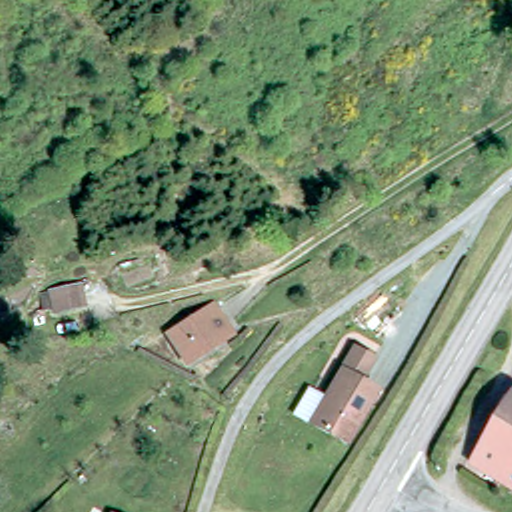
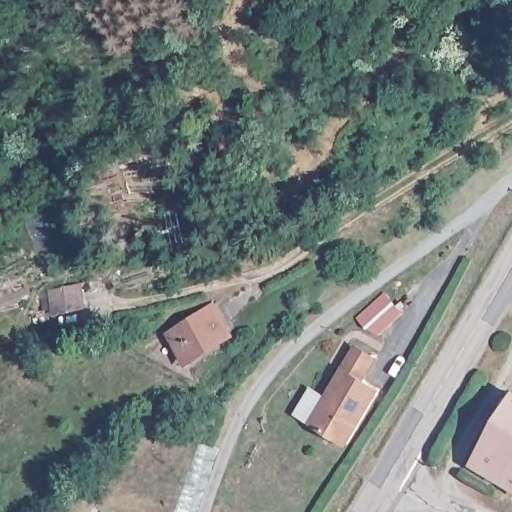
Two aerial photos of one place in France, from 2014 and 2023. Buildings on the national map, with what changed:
unchanged [(403,285),(412,296),(385,316),(377,305),(403,285)]
unchanged [(81,286),(90,304),(57,318),(48,301),(81,286)]
unchanged [(208,313),(223,333),(191,363),(175,342),(208,313)]
unchanged [(373,366),(362,380),(379,391),(346,441),(310,421),(355,354),(373,366)]
unchanged [(512,496),(469,467),(512,403),(512,496)]

